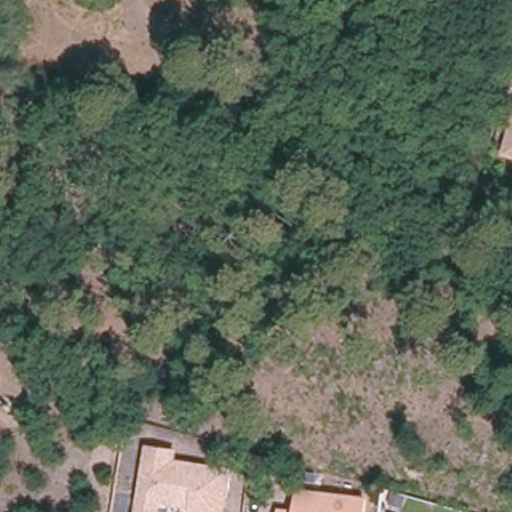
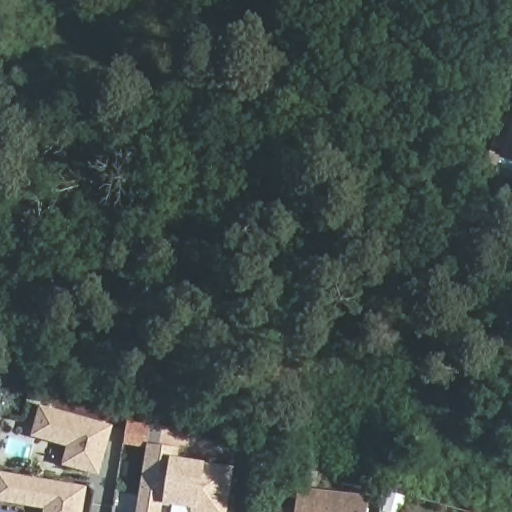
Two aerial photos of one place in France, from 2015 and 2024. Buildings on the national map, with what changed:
unchanged [(261,71),(247,109),(221,99),(236,61),(261,71)]
unchanged [(502,155),(512,120),(512,158),(502,155)]
new [(114,422),(101,468),(68,458),(73,439),(38,429),(45,403),(114,422)]
unchanged [(161,512),(135,512),(145,445),(179,449),(177,459),(232,467),(226,512),(190,512),(191,508),(162,505),(161,512)]
new [(259,453),(279,455),(276,480),(256,477),(259,453)]
new [(83,512),(48,512),(49,502),(0,493),(0,484),(2,469),(88,484),(83,512)]
unchanged [(366,512),(279,512),(279,508),(294,509),(297,488),(368,496),(366,512)]

